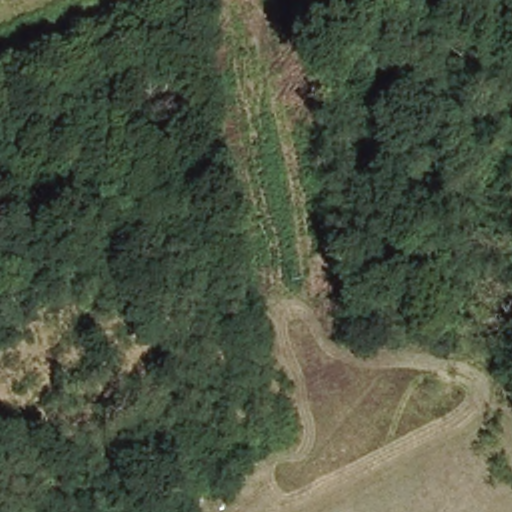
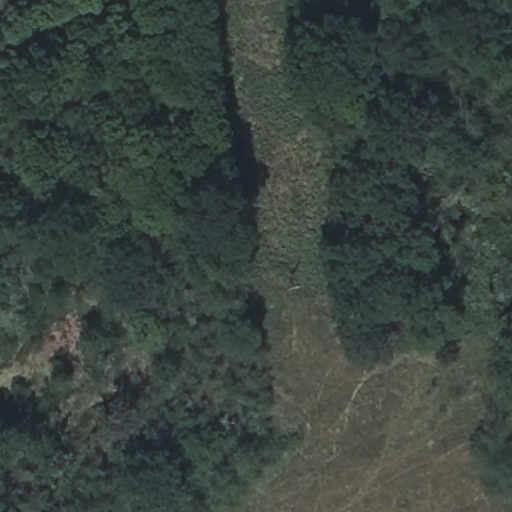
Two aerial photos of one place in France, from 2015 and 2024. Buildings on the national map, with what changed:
[]

